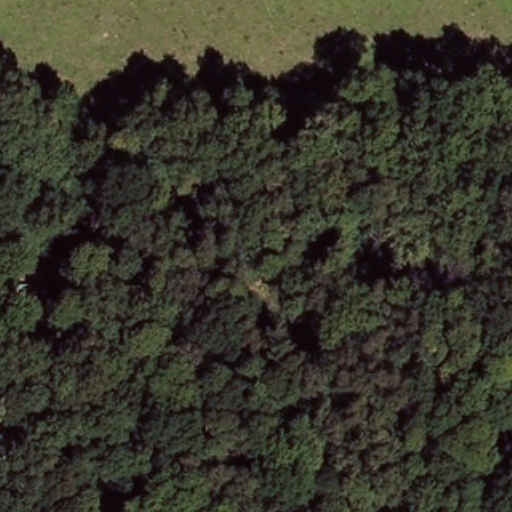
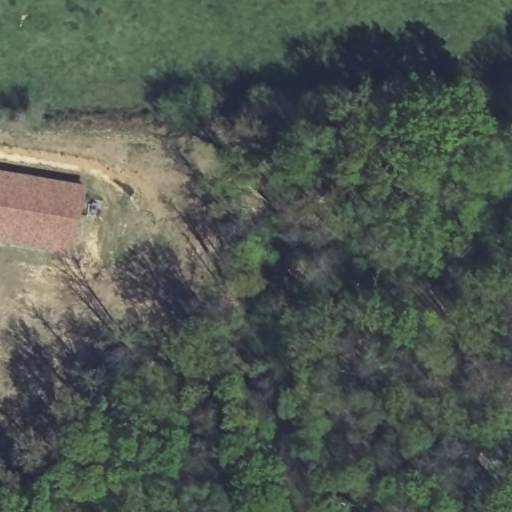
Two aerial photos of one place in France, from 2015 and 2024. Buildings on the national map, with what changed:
new [(77,256),(0,242),(0,171),(88,187),(77,256)]

